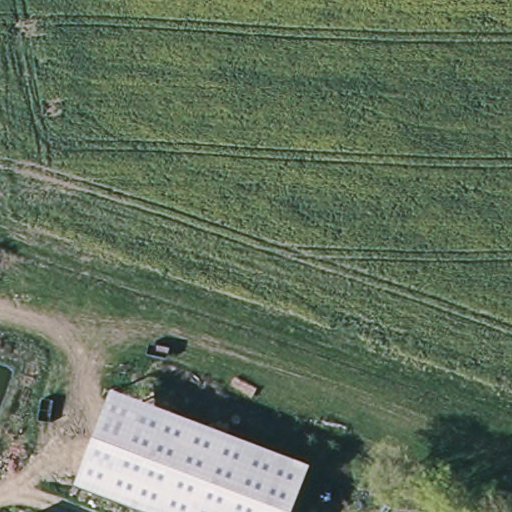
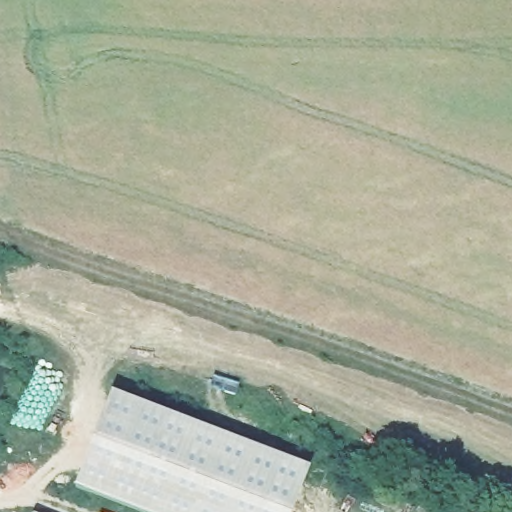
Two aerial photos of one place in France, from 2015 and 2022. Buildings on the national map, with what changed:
unchanged [(295,512),(134,512),(76,491),(112,390),(312,469),(295,512)]

